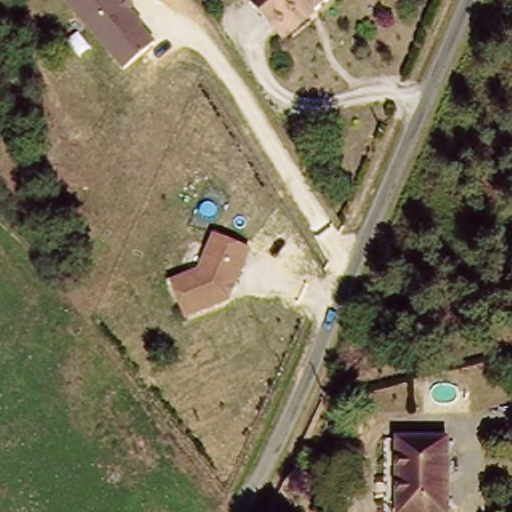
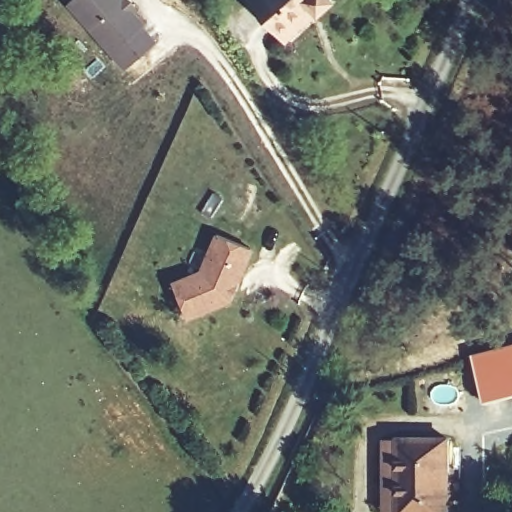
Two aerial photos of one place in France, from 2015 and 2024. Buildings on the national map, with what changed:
unchanged [(142,29),(153,43),(124,68),(67,4),(71,0),(126,0),(148,24),(142,29)]
unchanged [(251,0),(329,0),(326,4),(318,12),(287,44),(279,36),(246,5),(251,0)]
unchanged [(255,249),(231,300),(188,319),(171,279),(200,267),(217,232),(255,249)]
new [(512,343),(512,397),(484,404),(472,354),(512,343)]
unchanged [(397,439),(448,439),(447,512),(397,512),(397,439)]

